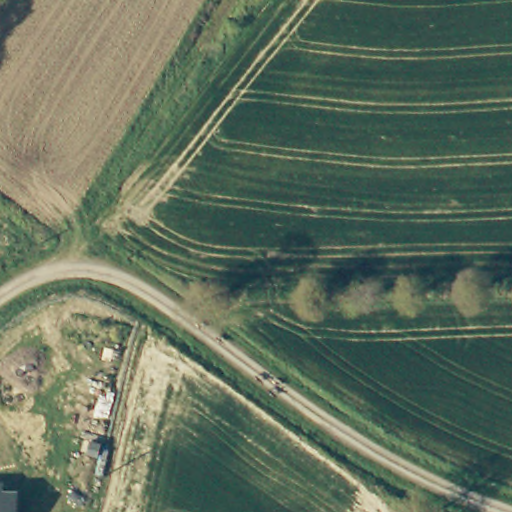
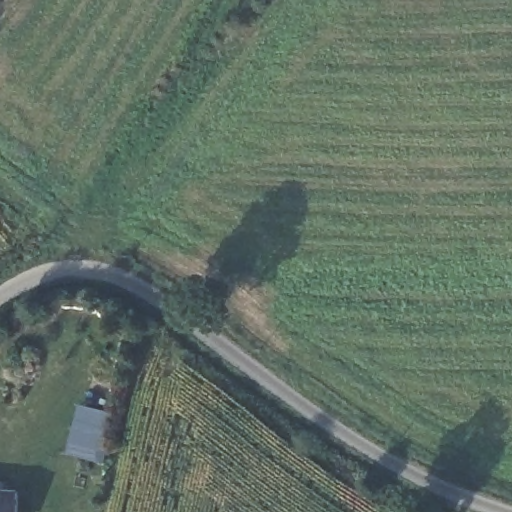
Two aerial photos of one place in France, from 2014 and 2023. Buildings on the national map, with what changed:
new [(82,404),(117,411),(105,463),(68,455),(82,404)]
unchanged [(6,491),(22,491),(22,512),(0,512),(0,483),(7,484),(6,491)]

